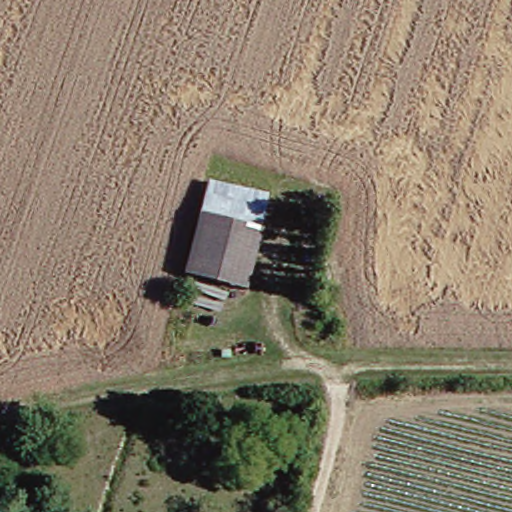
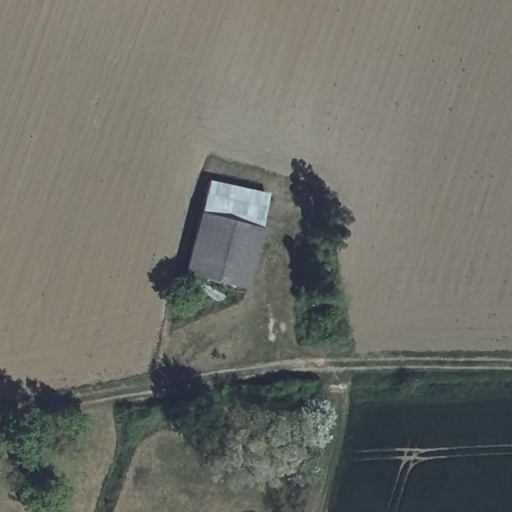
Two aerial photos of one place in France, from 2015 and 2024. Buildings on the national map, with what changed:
unchanged [(205,213),(213,180),(274,194),(266,230),(251,288),(193,272),(205,213)]

